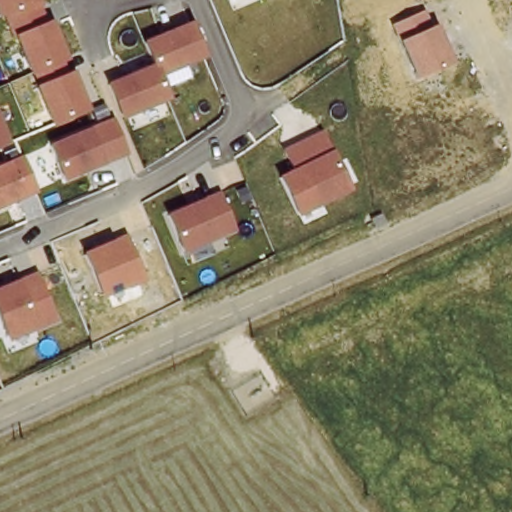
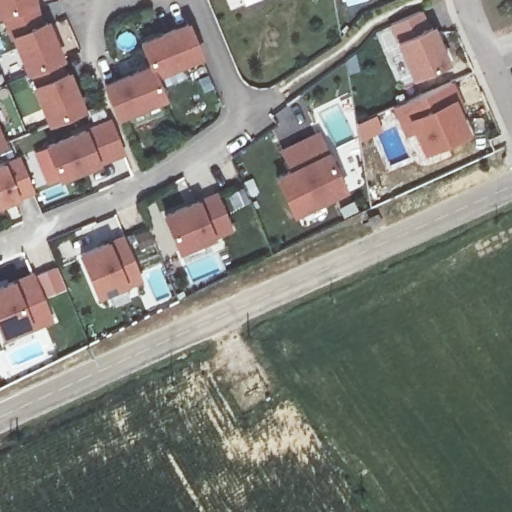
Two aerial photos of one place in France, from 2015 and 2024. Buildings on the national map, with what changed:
unchanged [(51,21),(68,60),(63,62),(68,73),(73,71),(90,112),(53,130),(13,35),(8,36),(1,17),(0,17),(0,0),(38,0),(45,23),(51,21)]
unchanged [(422,10),(450,64),(417,81),(390,26),(422,10)]
unchanged [(103,84),(148,65),(140,42),(190,22),(203,59),(160,77),(168,101),(121,120),(103,84)]
new [(453,82),(465,110),(459,111),(469,134),(422,154),(414,133),(405,137),(393,108),(453,82)]
unchanged [(45,145),(86,128),(111,119),(126,155),(100,166),(60,182),(45,145)]
unchanged [(8,142),(0,145),(0,123),(8,142)]
unchanged [(275,175),(290,168),(280,149),(320,130),(331,152),(350,190),(295,217),(275,175)]
unchanged [(5,162),(22,155),(36,192),(16,201),(0,207),(0,163),(5,162)]
unchanged [(162,214),(198,199),(218,191),(232,230),(215,239),(181,254),(162,214)]
unchanged [(122,235),(141,279),(98,297),(80,252),(122,235)]
unchanged [(0,329),(0,286),(13,281),(35,272),(55,318),(32,328),(5,340),(0,329)]

